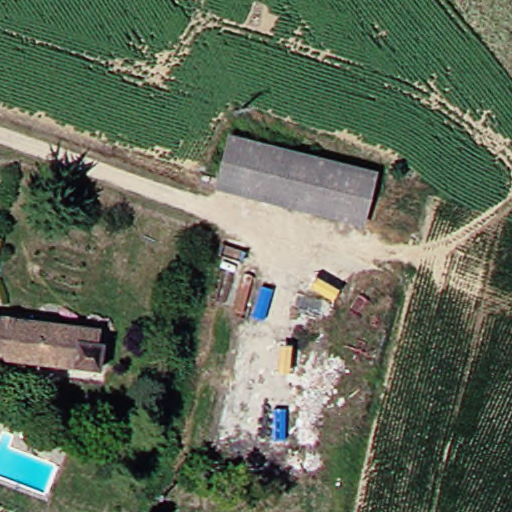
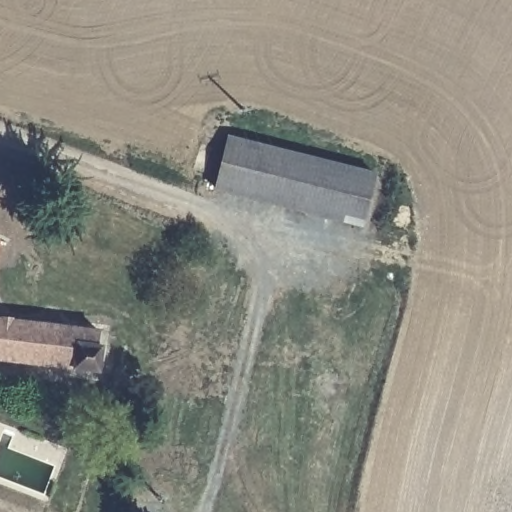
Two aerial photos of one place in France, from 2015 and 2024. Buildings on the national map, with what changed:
unchanged [(352,220),(204,186),(215,134),(365,165),(352,220)]
unchanged [(0,226),(0,207),(8,208),(4,227),(0,226)]
unchanged [(97,351),(92,350),(87,374),(0,364),(0,305),(98,329),(97,351)]

